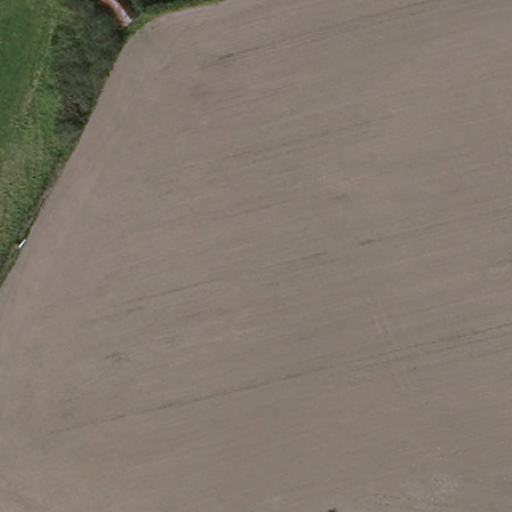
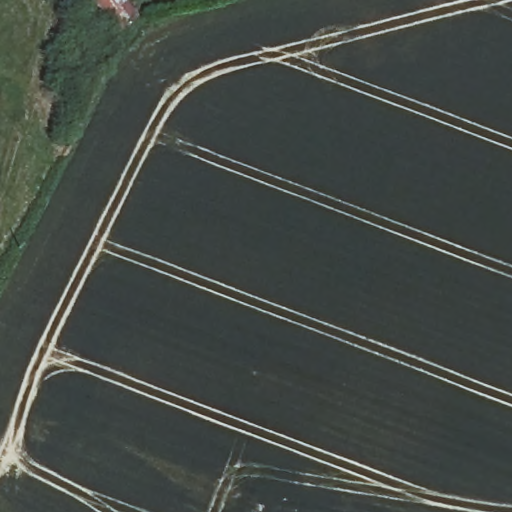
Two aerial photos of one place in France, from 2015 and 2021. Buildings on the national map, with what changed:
unchanged [(124,0),(138,16),(118,33),(89,3),(91,2),(93,0),(124,0)]

